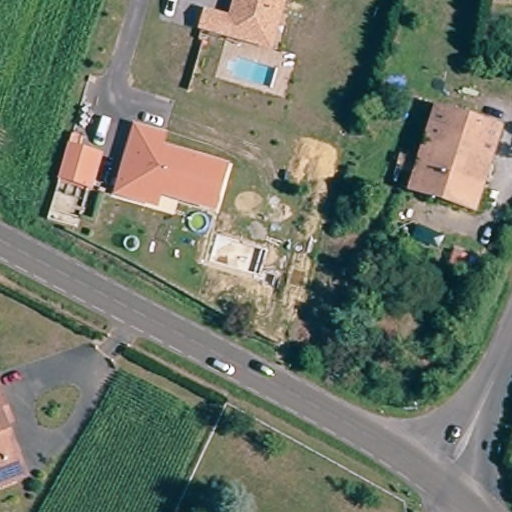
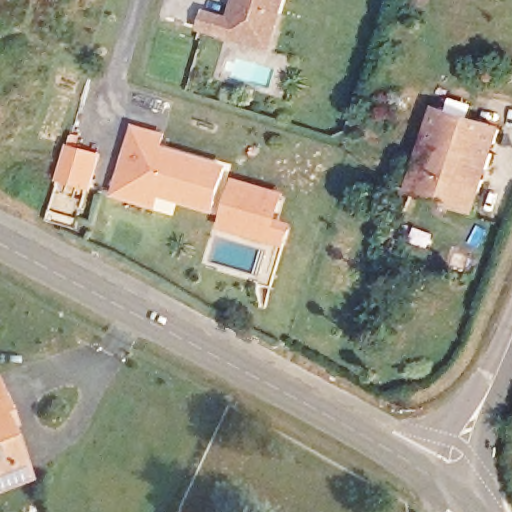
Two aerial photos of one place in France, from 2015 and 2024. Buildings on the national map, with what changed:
unchanged [(198,31),(204,8),(229,14),(233,0),(287,0),(273,53),(198,31)]
unchanged [(477,210),(410,191),(434,109),(501,129),(477,210)]
unchanged [(145,208),(124,202),(139,148),(142,137),(162,143),(170,144),(166,156),(169,157),(233,174),(232,178),(221,215),(166,200),(163,213),(145,208)]
unchanged [(106,165),(98,194),(69,187),(71,177),(76,158),(106,165)]
new [(234,177),(286,192),(279,218),(293,222),(285,248),(220,229),(234,177)]
unchanged [(15,483),(0,487),(0,378),(4,377),(9,392),(18,420),(10,422),(21,459),(27,479),(15,483)]

